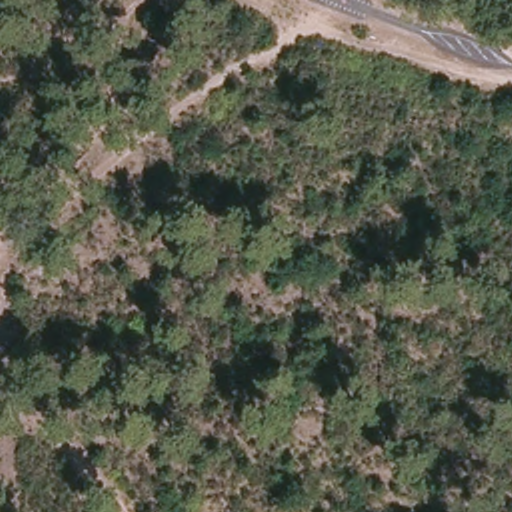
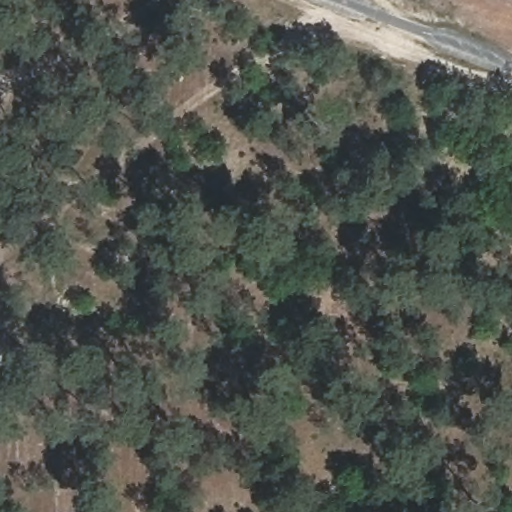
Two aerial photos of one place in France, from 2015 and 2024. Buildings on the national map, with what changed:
[]

